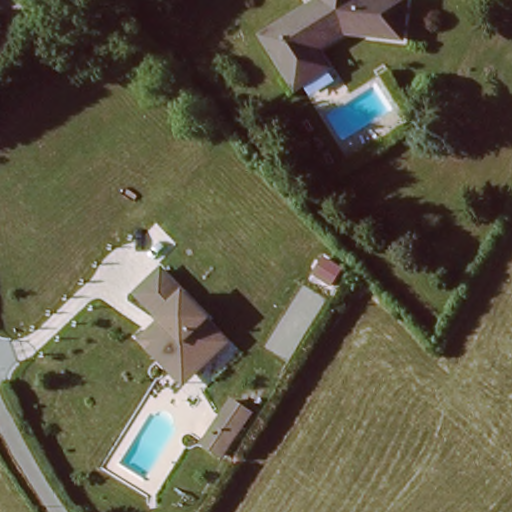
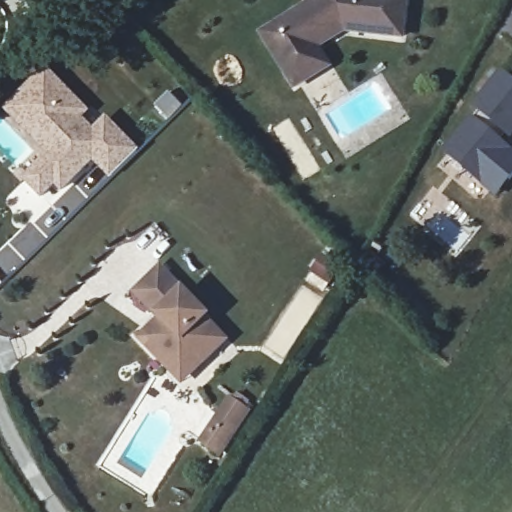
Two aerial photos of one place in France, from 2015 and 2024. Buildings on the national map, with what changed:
unchanged [(289,85),(282,72),(257,32),(299,6),(303,12),(313,7),(308,0),(397,0),(394,32),(338,27),(317,41),(313,32),(308,35),(323,62),(289,85)]
new [(47,67),(91,112),(85,121),(95,131),(108,117),(143,152),(113,182),(95,164),(63,195),(57,187),(43,202),(22,180),(47,156),(3,110),(47,67)]
new [(474,119),(482,110),(476,105),(502,73),(512,81),(512,134),(512,135),(508,132),(501,141),(505,145),(511,150),(483,182),(446,151),(450,145),(473,118),(474,119)]
unchanged [(161,366),(140,343),(161,323),(135,297),(159,273),(207,322),(205,325),(225,346),(192,377),(182,387),(161,366)]
unchanged [(220,457),(201,445),(208,434),(216,421),(224,427),(235,433),(220,457)]

